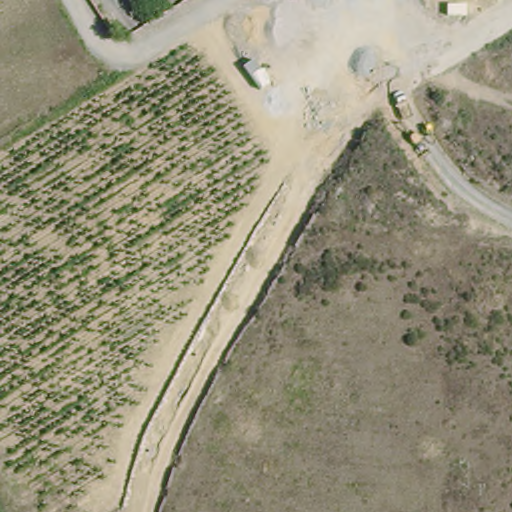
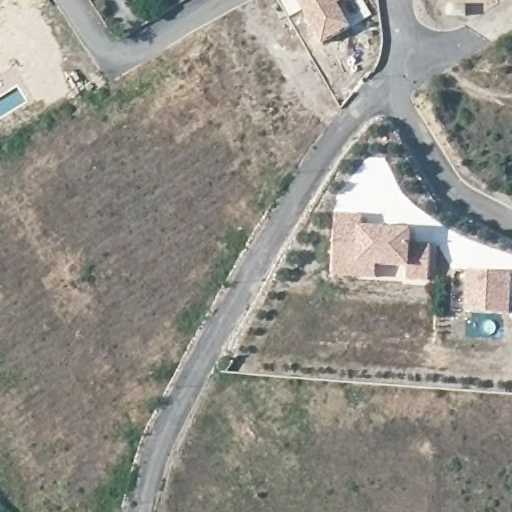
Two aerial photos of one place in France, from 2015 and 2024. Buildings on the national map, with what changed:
new [(352,26),(322,43),(297,0),(342,0),(338,2),(352,26)]
new [(365,217),(365,229),(414,232),(414,246),(432,246),(431,281),(410,281),(410,268),(378,267),(378,282),(336,278),(338,216),(365,217)]
new [(512,274),(512,305),(512,315),(467,312),(470,272),(512,274)]

